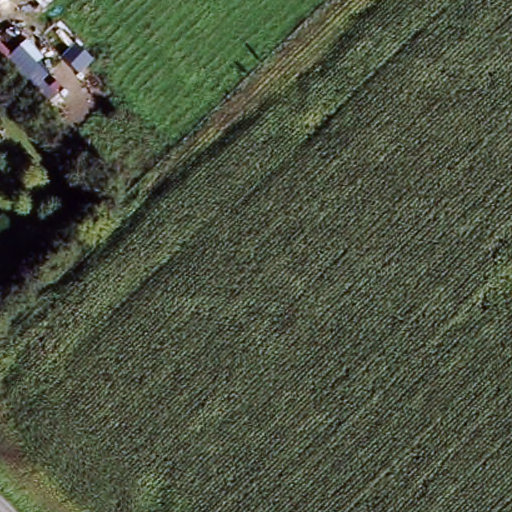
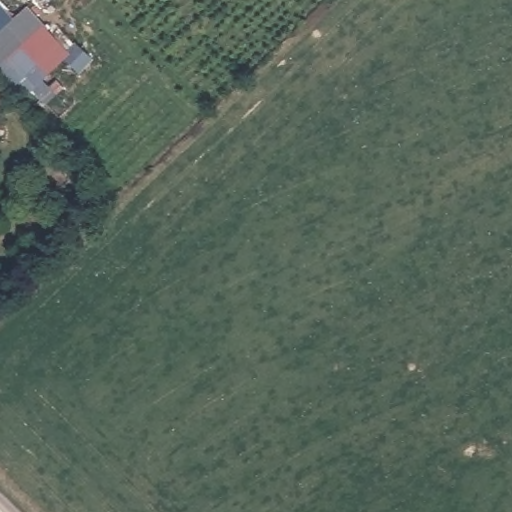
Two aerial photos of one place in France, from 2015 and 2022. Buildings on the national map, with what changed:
new [(14,20),(29,7),(67,51),(75,43),(94,61),(81,74),(67,60),(45,82),(57,95),(45,105),(34,93),(24,102),(0,72),(0,3),(14,20)]
demolished [(30,40),(57,64),(30,100),(0,82),(0,76),(30,40)]

